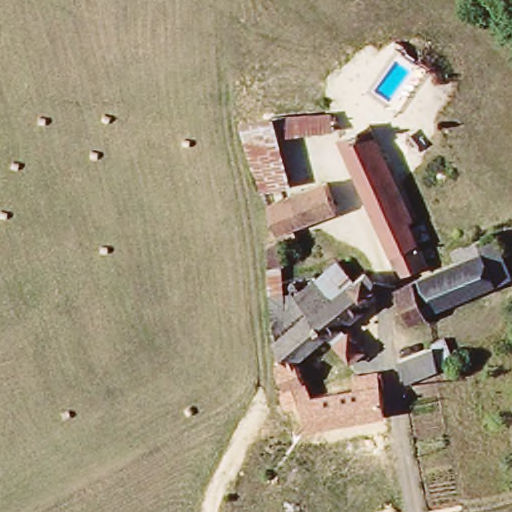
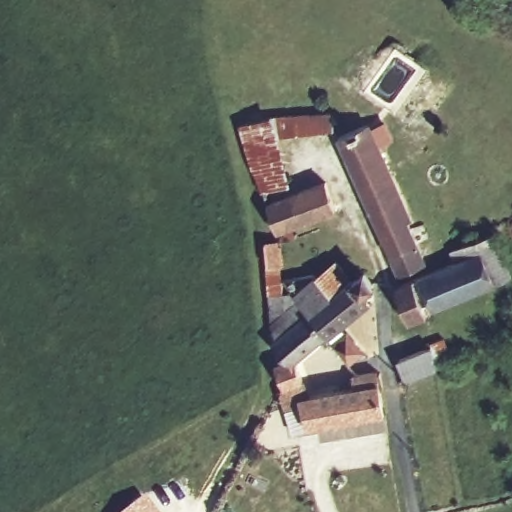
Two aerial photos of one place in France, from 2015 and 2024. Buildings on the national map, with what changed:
unchanged [(294,134),(275,133),(289,180),(261,189),(247,152),(239,121),(269,113),(291,113),(361,107),(371,127),(367,129),(409,218),(412,227),(420,224),(427,237),(415,242),(423,263),(393,274),(384,254),(333,129),(294,134)]
unchanged [(266,202),(323,184),(331,211),(291,223),(274,228),(266,202)]
unchanged [(408,320),(389,286),(451,261),(447,251),(491,232),(507,277),(422,313),(408,320)]
unchanged [(264,242),(278,239),(282,263),(264,265),(264,242)]
unchanged [(301,424),(295,402),(280,406),(275,394),(281,391),(271,352),(274,351),(269,330),(266,278),(281,276),(281,308),(296,297),(301,293),(304,295),(314,287),(324,300),(329,296),(315,275),(336,261),(350,278),(361,268),(378,289),(365,299),(340,320),(359,347),(343,356),(324,333),(292,357),(305,395),(351,386),(348,374),(356,373),(376,370),(381,411),(301,424)]
unchanged [(435,371),(418,382),(410,360),(432,351),(435,371)]
new [(155,512),(121,512),(141,495),(155,512)]

